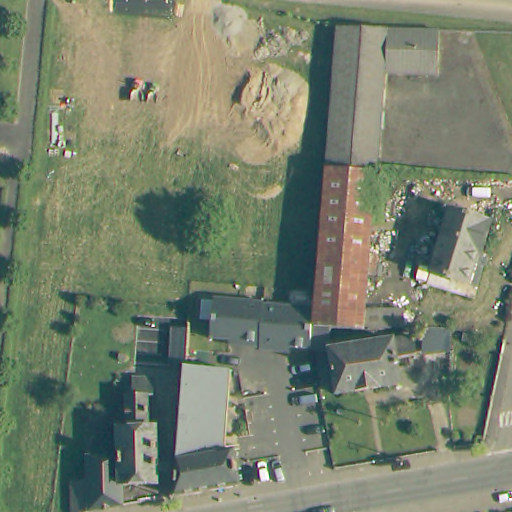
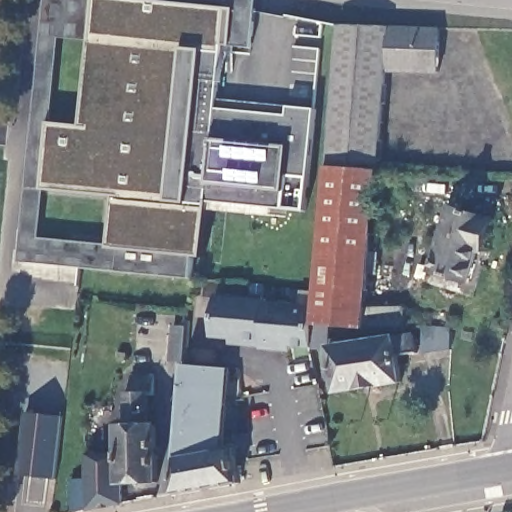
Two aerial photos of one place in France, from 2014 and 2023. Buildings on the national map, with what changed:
new [(232,46),(223,45),(217,99),(289,106),(316,109),(305,210),(272,208),(271,216),(208,210),(204,258),(194,257),(192,279),(21,263),(45,0),(256,0),(252,47),(232,46)]
unchanged [(350,25),(431,29),(430,74),(377,73),(371,169),(371,174),(322,172),(331,24),(350,25)]
unchanged [(310,352),(310,350),(279,349),(279,354),(262,353),(262,350),(254,349),(245,349),(245,344),(212,342),(215,301),(258,304),(265,304),(264,307),(314,309),(322,172),(371,174),(366,254),(375,255),(374,274),(365,274),(363,303),(362,327),(362,332),(320,328),(320,352),(310,352)]
unchanged [(493,209),(480,254),(486,255),(478,287),(430,273),(452,195),(493,209)]
unchanged [(363,303),(407,304),(409,327),(362,327),(363,303)]
unchanged [(190,349),(189,358),(175,357),(176,349),(178,322),(192,323),(190,349)]
unchanged [(410,339),(412,358),(393,360),(397,386),(333,394),(327,352),(410,339)]
unchanged [(226,449),(226,451),(181,459),(184,424),(189,363),(232,367),(226,449)]
unchanged [(128,384),(133,384),(132,374),(152,374),(152,392),(147,393),(147,424),(156,424),(157,481),(121,482),(122,503),(72,511),(71,479),(88,479),(88,453),(120,453),(119,424),(128,424),(128,384)]
new [(25,412),(64,417),(57,479),(18,474),(25,412)]
unchanged [(226,451),(226,449),(239,448),(244,482),(179,493),(181,459),(226,451)]

